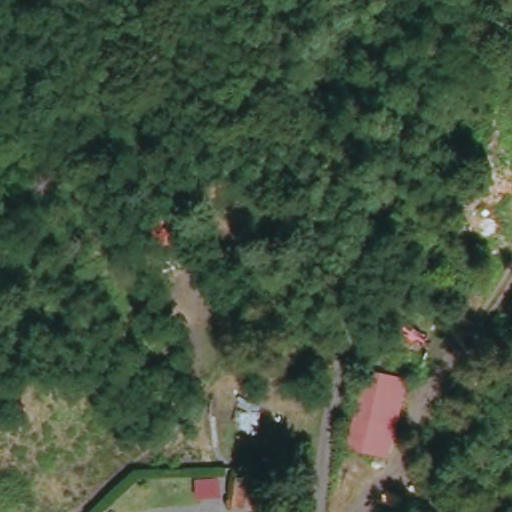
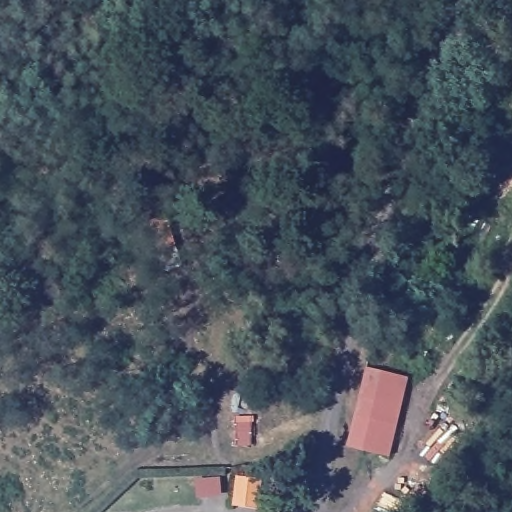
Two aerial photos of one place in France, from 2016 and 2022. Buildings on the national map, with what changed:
unchanged [(393,424),(355,412),(368,366),(406,377),(393,424)]
unchanged [(385,455),(346,444),(355,412),(393,424),(385,455)]
unchanged [(234,504),(235,498),(238,478),(259,480),(255,501),(254,506),(234,504)]

